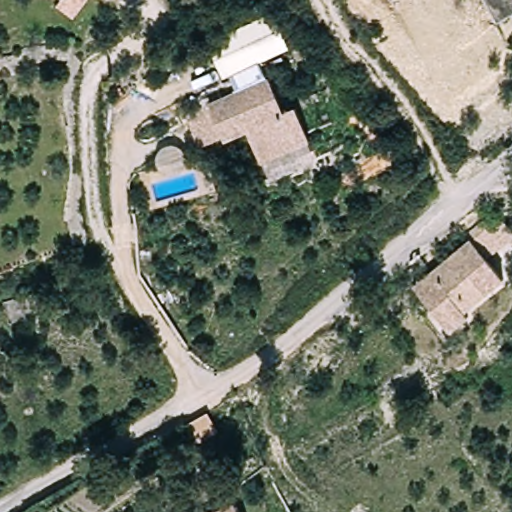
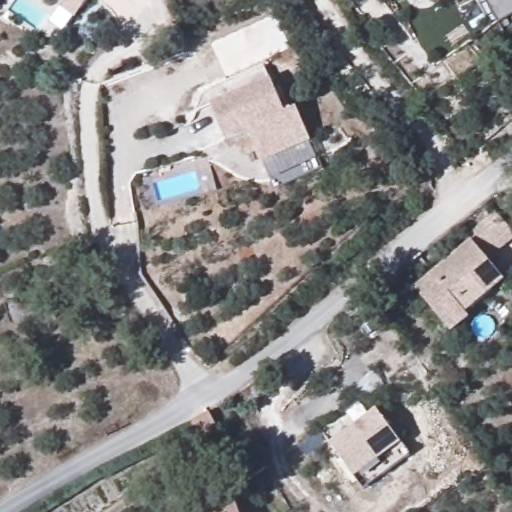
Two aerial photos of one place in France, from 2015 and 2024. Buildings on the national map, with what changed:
unchanged [(55,7),(61,0),(88,0),(72,21),(55,7)]
unchanged [(487,0),(512,0),(512,14),(497,21),(487,0)]
unchanged [(224,79),(207,41),(274,12),(291,48),(224,79)]
unchanged [(268,78),(283,114),(295,109),(310,144),(262,166),(247,133),(224,143),(207,104),(268,78)]
unchanged [(467,244),(461,236),(488,213),(510,239),(485,260),(505,284),(465,317),(469,322),(451,337),(412,290),(467,244)]
new [(402,443),(410,456),(364,489),(355,478),(329,443),(376,409),(402,443)]
unchanged [(206,412),(217,433),(197,442),(187,422),(206,412)]
unchanged [(235,504),(238,512),(213,512),(235,504)]

